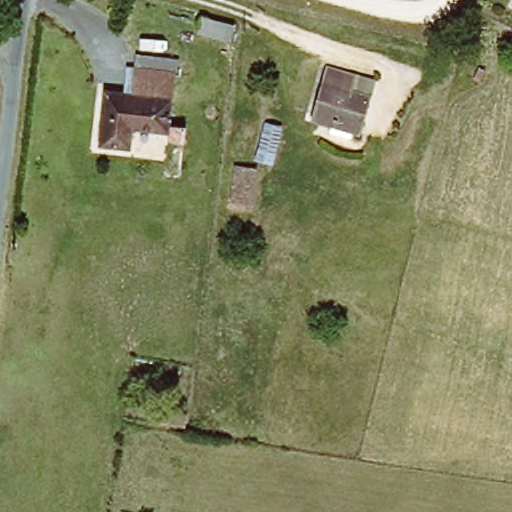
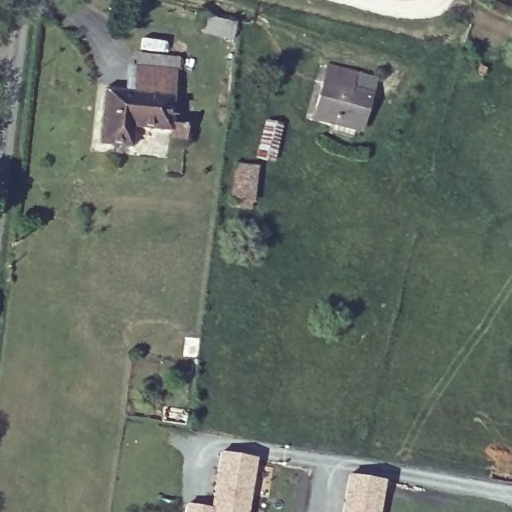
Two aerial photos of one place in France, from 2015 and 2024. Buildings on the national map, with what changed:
unchanged [(230,40),(196,32),(200,16),(233,24),(230,40)]
unchanged [(136,128),(134,147),(103,144),(109,89),(128,91),(131,66),(140,67),(141,55),(180,59),(179,71),(174,131),(136,128)]
unchanged [(312,120),(314,113),(326,66),(354,75),(370,79),(366,94),(357,125),(355,132),(312,120)]
unchanged [(255,157),(264,122),(281,126),(272,162),(255,157)]
unchanged [(230,201),(235,167),(254,169),(250,202),(230,201)]
unchanged [(184,425),(159,421),(161,406),(185,410),(184,425)]
new [(214,508),(224,451),(257,457),(247,512),(188,512),(189,503),(214,508)]
new [(385,481),(380,512),(346,512),(352,476),(385,481)]

